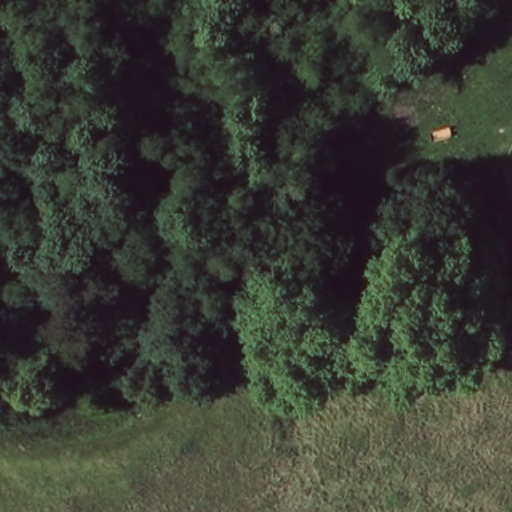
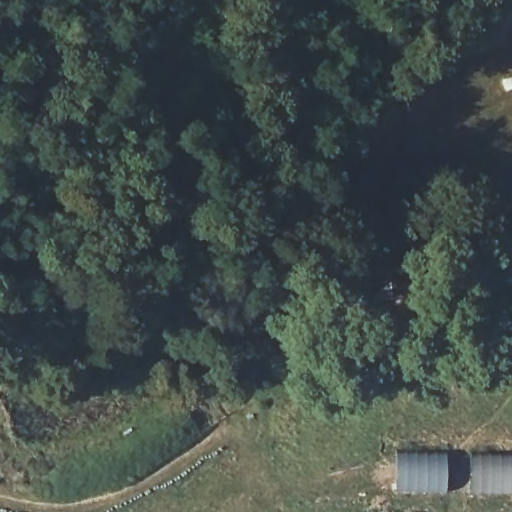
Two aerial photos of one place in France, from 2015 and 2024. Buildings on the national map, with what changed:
new [(396,449),(446,450),(445,493),(395,492),(396,449)]
new [(472,453),(512,455),(512,494),(471,494),(472,453)]

